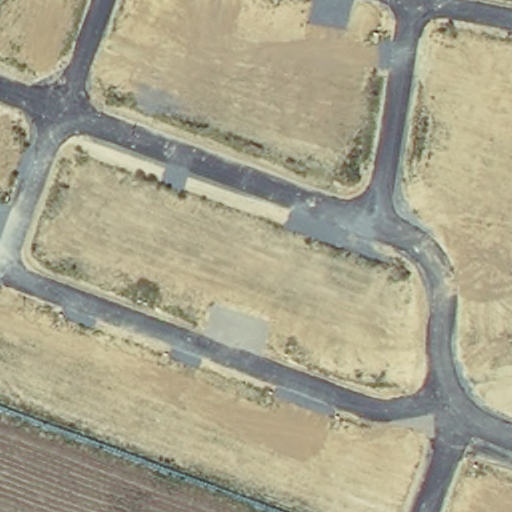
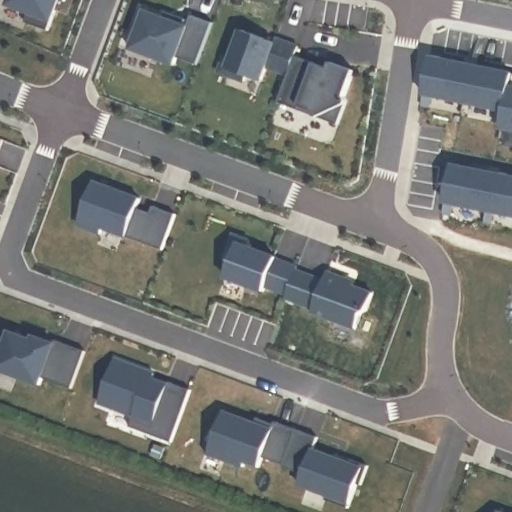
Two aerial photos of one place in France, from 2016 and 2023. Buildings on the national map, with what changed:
new [(54,24),(8,4),(10,0),(64,0),(54,24)]
new [(176,57),(173,64),(130,48),(136,32),(132,30),(140,8),(186,25),(191,14),(212,22),(197,64),(176,57)]
new [(295,52),(287,75),(266,66),(261,80),(246,75),(244,81),(218,71),(224,56),(230,58),(241,29),(274,41),(275,38),(298,46),(295,52)]
new [(295,52),(357,73),(341,120),(279,99),(287,75),(295,52)]
new [(512,126),(502,125),(503,108),(423,94),(430,53),(512,70),(512,126)]
new [(512,132),(512,139),(511,138),(512,132)]
new [(512,173),(512,218),(439,203),(447,161),(512,173)]
new [(93,181),(139,198),(132,216),(146,221),(152,205),(175,214),(162,249),(102,227),(100,233),(77,224),(93,181)]
new [(297,260),(295,267),(321,276),(326,266),(347,274),(344,281),(364,289),(352,325),(283,298),(277,313),(241,299),(248,281),(229,274),(239,240),(297,260)]
new [(4,344),(9,331),(32,339),(33,335),(53,343),(55,340),(84,350),(71,388),(41,377),(39,384),(0,370),(0,342),(4,344)]
new [(154,373),(152,378),(166,383),(167,381),(190,389),(171,442),(128,426),(132,415),(98,402),(114,358),(154,373)]
new [(152,376),(167,381),(166,383),(152,378),(152,376)]
new [(258,467),(244,462),(243,466),(204,452),(214,426),(217,428),(223,411),(271,429),(274,421),(295,429),(282,464),(262,456),(258,467)]
new [(273,423),(271,429),(254,422),(256,417),(273,423)]
new [(295,429),(317,437),(312,449),(346,461),(348,458),(367,465),(360,484),(356,483),(347,508),(324,499),(326,495),(298,484),(302,473),(282,466),(282,464),(295,429)]
new [(335,453),(348,458),(346,461),(334,457),(335,453)]
new [(500,512),(494,512),(494,510),(500,512)]

